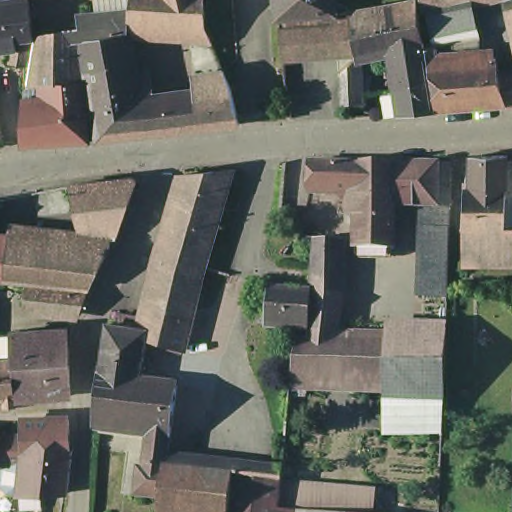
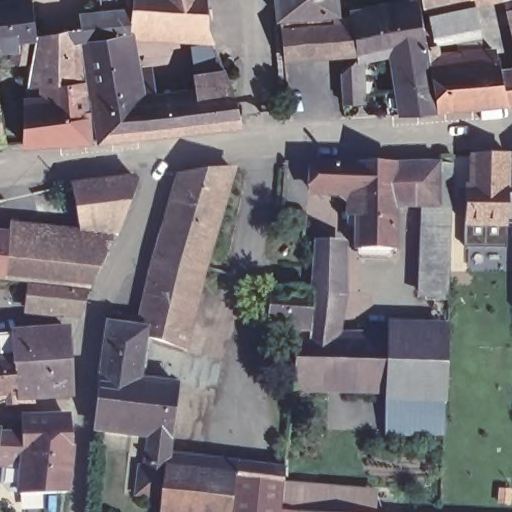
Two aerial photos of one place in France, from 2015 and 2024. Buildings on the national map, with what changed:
unchanged [(25,3),(25,0),(42,0),(45,21),(33,22),(33,26),(35,42),(35,44),(28,68),(26,68),(11,67),(9,46),(0,48),(0,7),(25,3)]
unchanged [(103,41),(100,42),(81,46),(80,46),(77,46),(85,84),(83,84),(56,88),(54,57),(67,55),(65,35),(87,31),(86,22),(102,19),(99,0),(134,0),(131,36),(103,41)]
unchanged [(183,32),(135,36),(131,36),(134,0),(205,0),(207,30),(183,32)]
unchanged [(278,19),(277,0),(337,0),(338,13),(278,19)]
unchanged [(365,56),(355,101),(350,101),(342,102),(342,101),(340,73),(354,61),(357,58),(356,52),(351,17),(350,14),(350,11),(410,0),(419,0),(421,12),(424,32),(434,31),(428,6),(452,0),(471,0),(480,38),(437,46),(438,54),(482,51),(483,58),(497,56),(500,71),(507,105),(437,111),(399,113),(389,114),(386,90),(396,89),(395,74),(392,51),(365,56)]
unchanged [(423,8),(422,0),(452,0),(428,6),(423,8)]
unchanged [(280,24),(280,23),(351,17),(356,52),(283,58),(280,24)]
unchanged [(81,46),(100,42),(103,41),(131,36),(135,36),(143,88),(90,96),(81,46)]
unchanged [(512,69),(512,104),(507,105),(500,71),(512,69)]
unchanged [(90,96),(143,88),(146,103),(201,98),(198,81),(225,76),(231,91),(240,124),(240,130),(163,139),(97,146),(90,96)]
unchanged [(25,103),(26,103),(47,103),(46,90),(56,88),(83,84),(91,146),(53,150),(22,151),(25,103)]
unchanged [(5,150),(0,150),(0,118),(5,150)]
unchanged [(475,188),(476,156),(512,155),(512,163),(512,260),(469,260),(469,227),(470,227),(470,188),(475,188)]
unchanged [(390,165),(431,165),(431,158),(448,157),(447,207),(435,208),(390,209),(390,165)]
unchanged [(342,217),(342,204),(333,196),(311,196),(305,187),(306,163),(352,165),(390,165),(390,209),(390,252),(350,250),(350,217),(342,217)]
unchanged [(153,263),(158,248),(180,176),(232,169),(201,275),(153,263)]
unchanged [(72,184),(134,177),(137,181),(119,233),(80,227),(72,186),(72,184)]
unchanged [(420,298),(415,277),(418,229),(446,230),(445,260),(444,299),(420,298)]
unchanged [(108,253),(90,289),(0,280),(0,245),(7,246),(8,239),(61,246),(108,253)]
unchanged [(310,334),(310,333),(310,331),(311,294),(310,293),(313,240),(332,242),(335,261),(335,299),(328,334),(310,334)]
unchanged [(161,499),(136,495),(125,494),(127,454),(94,450),(95,432),(95,430),(96,415),(100,376),(101,376),(102,370),(108,325),(108,324),(120,326),(122,315),(141,318),(153,263),(201,275),(184,350),(144,337),(140,366),(145,367),(143,381),(177,386),(176,394),(170,437),(170,439),(167,465),(235,472),(250,474),(283,476),(298,478),(296,512),(160,512),(161,499)]
unchanged [(45,308),(25,305),(27,286),(47,288),(88,293),(81,312),(45,308)]
unchanged [(310,293),(311,294),(310,331),(300,330),(267,329),(269,302),(270,290),(310,293)]
unchanged [(5,356),(0,356),(0,335),(13,334),(68,331),(69,347),(72,395),(35,398),(35,399),(26,399),(19,400),(17,359),(15,360),(15,355),(5,356)]
unchanged [(299,334),(310,334),(328,334),(447,339),(445,393),(442,392),(386,390),(308,388),(307,397),(290,396),(291,387),(299,334)]
unchanged [(15,360),(17,359),(19,400),(0,401),(0,361),(15,360)]
unchanged [(441,431),(385,431),(386,390),(442,392),(441,431)]
unchanged [(23,436),(23,423),(70,420),(71,453),(72,456),(70,493),(65,493),(21,494),(21,491),(10,490),(3,482),(4,466),(0,466),(0,435),(23,436)]

